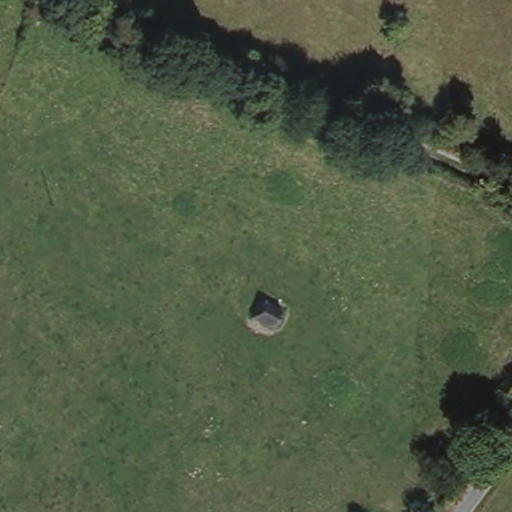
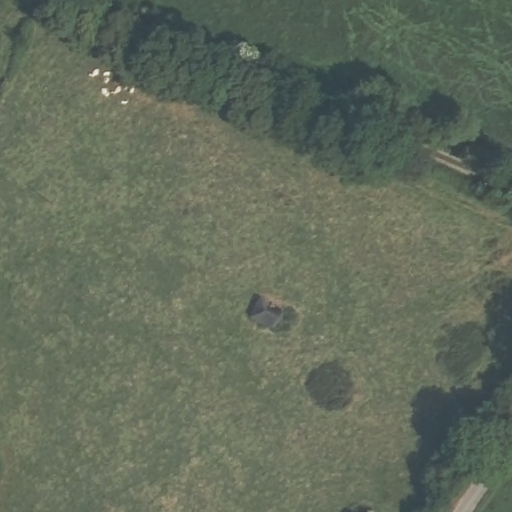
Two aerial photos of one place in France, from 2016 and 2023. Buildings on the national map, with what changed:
unchanged [(284,310),(276,328),(254,320),(264,300),(284,310)]

